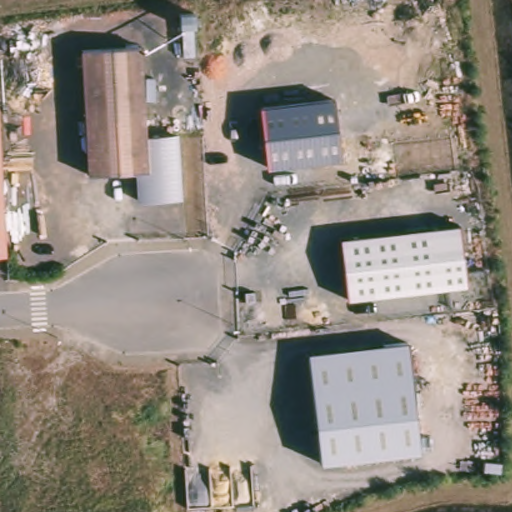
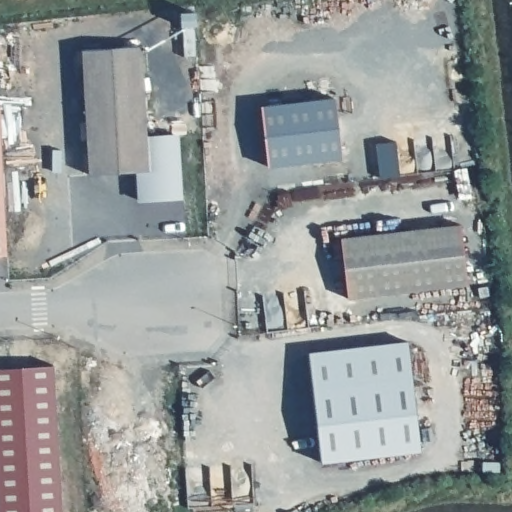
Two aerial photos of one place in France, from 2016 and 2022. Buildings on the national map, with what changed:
unchanged [(141,45),(146,135),(176,132),(179,197),(137,200),(135,170),(87,172),(80,48),(141,45)]
unchanged [(266,167),(260,105),(336,96),(342,158),(266,167)]
unchanged [(0,254),(0,134),(6,254),(0,254)]
new [(395,141),(398,176),(380,178),(375,144),(395,141)]
unchanged [(348,298),(340,238),(459,225),(466,285),(348,298)]
unchanged [(407,340),(419,450),(322,460),(308,351),(407,340)]
new [(60,512),(0,512),(0,368),(52,365),(60,512)]

